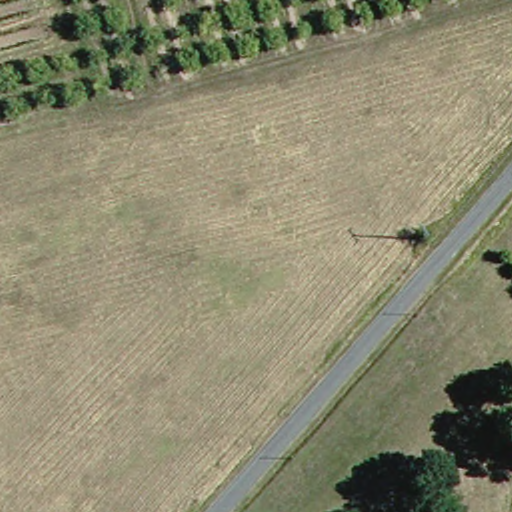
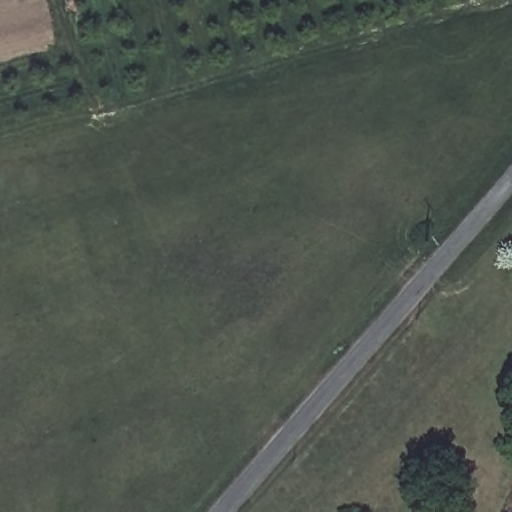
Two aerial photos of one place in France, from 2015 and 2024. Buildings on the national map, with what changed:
[]

